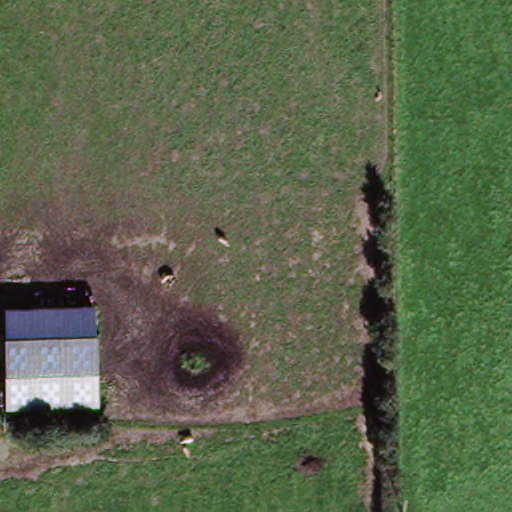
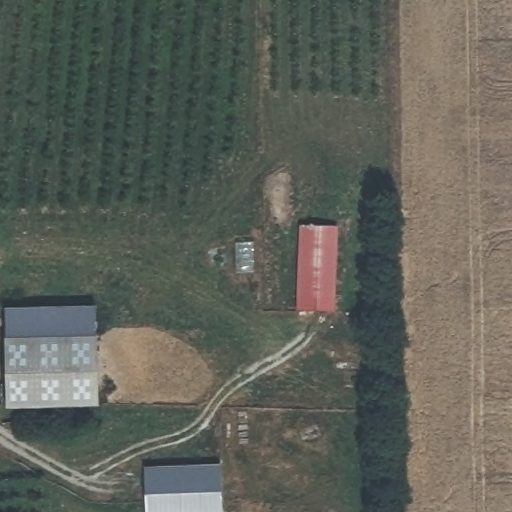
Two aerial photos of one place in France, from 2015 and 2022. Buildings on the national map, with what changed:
new [(341,226),(340,312),(303,310),(303,227),(341,226)]
unchanged [(12,307),(98,303),(99,337),(12,338),(12,307)]
unchanged [(96,339),(96,403),(9,404),(9,339),(96,339)]
new [(220,511),(182,512),(144,512),(143,466),(219,464),(220,511)]

